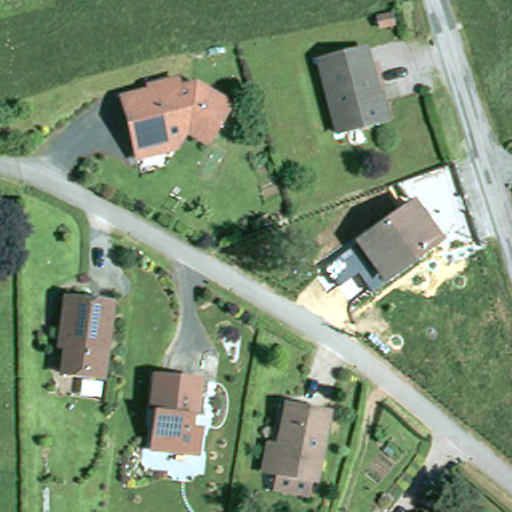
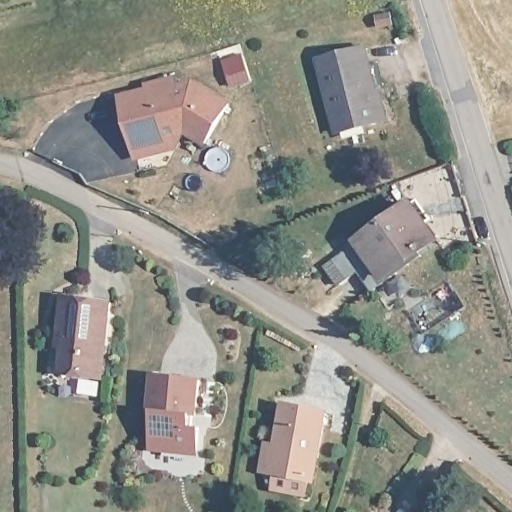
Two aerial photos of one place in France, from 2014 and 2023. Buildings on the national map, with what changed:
unchanged [(342,132),(323,59),(367,48),(370,62),(373,61),(388,120),(342,132)]
unchanged [(135,160),(132,147),(125,98),(152,93),(151,85),(180,79),(182,87),(198,84),(234,105),(211,144),(187,142),(173,154),(135,160)]
unchanged [(415,203),(439,237),(385,274),(362,239),(415,203)]
unchanged [(327,264),(362,239),(385,274),(368,285),(358,270),(340,283),(327,264)]
unchanged [(69,301),(115,307),(113,320),(107,381),(67,377),(70,350),(64,349),(65,341),(69,301)]
unchanged [(192,417),(187,417),(185,429),(195,429),(192,455),(148,451),(152,413),(147,413),(150,378),(195,383),(192,417)]
unchanged [(278,457),(270,454),(265,452),(273,432),(277,433),(282,434),(297,394),(301,395),(335,407),(314,469),(310,467),(304,484),(286,478),(273,473),(278,457)]

